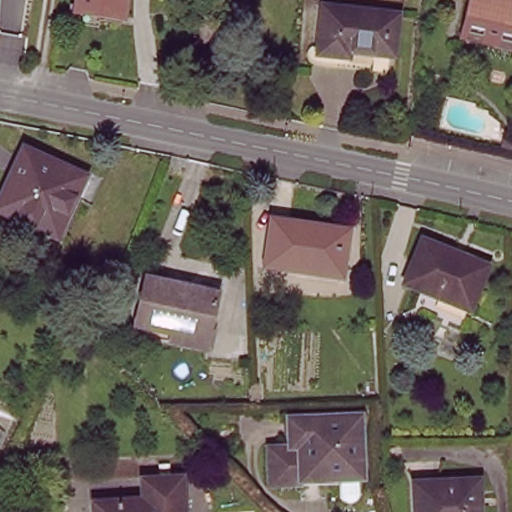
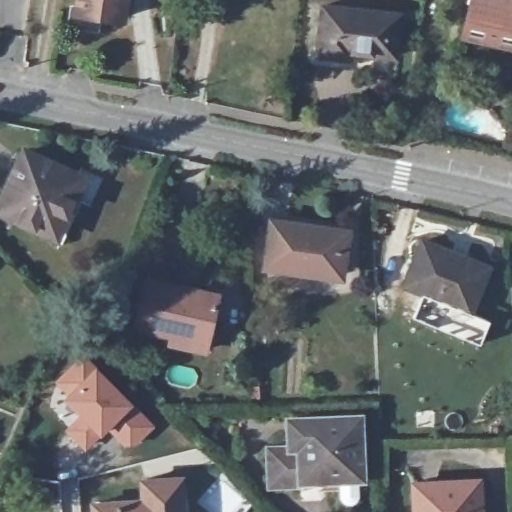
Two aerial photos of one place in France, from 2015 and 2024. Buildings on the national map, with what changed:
unchanged [(79,0),(126,0),(124,17),(123,24),(106,22),(77,18),(78,10),(79,0)]
unchanged [(491,37),(465,31),(471,0),(512,0),(512,46),(490,42),(491,37)]
unchanged [(346,57),(321,55),(327,7),(400,15),(395,55),(377,53),(376,61),(346,57)]
unchanged [(82,177),(74,195),(82,199),(62,241),(24,223),(26,219),(1,207),(27,151),(82,177)]
unchanged [(272,217),(347,229),(342,268),(334,267),(334,268),(307,265),(306,270),(265,264),(272,217)]
unchanged [(453,250),(463,254),(487,263),(471,307),(409,282),(405,281),(423,237),(453,250)]
unchanged [(217,293),(212,317),(205,347),(169,339),(170,332),(134,322),(144,282),(146,277),(217,293)]
new [(82,352),(134,403),(108,430),(86,451),(64,431),(79,414),(62,397),(65,393),(53,381),(82,352)]
new [(134,403),(156,425),(129,451),(108,430),(134,403)]
unchanged [(268,445),(289,444),(289,417),(360,414),(363,478),(363,488),(360,502),(342,503),(337,486),(308,487),(301,487),(301,482),(269,483),(268,445)]
unchanged [(480,512),(416,512),(415,481),(479,478),(480,512)]
unchanged [(100,506),(149,503),(148,483),(186,482),(187,512),(100,512),(100,506)]

